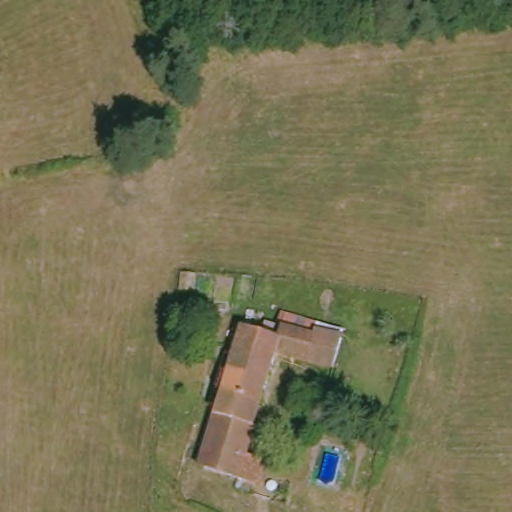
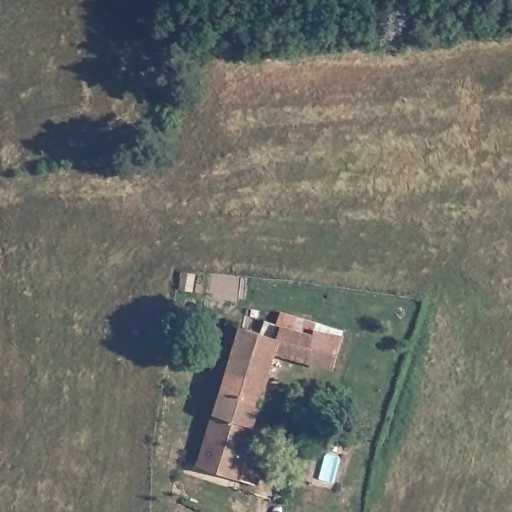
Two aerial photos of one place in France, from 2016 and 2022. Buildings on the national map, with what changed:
unchanged [(256,482),(237,476),(196,463),(241,323),(275,333),(279,323),(315,334),(317,326),(340,333),(330,369),(307,360),(309,354),(301,350),(297,357),(285,352),(287,347),(281,344),(244,454),(263,460),(256,482)]

